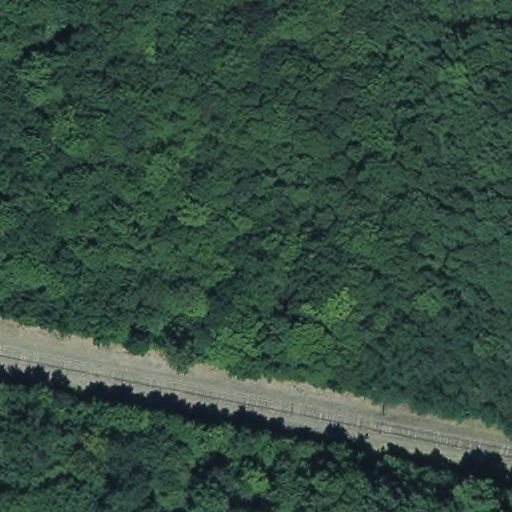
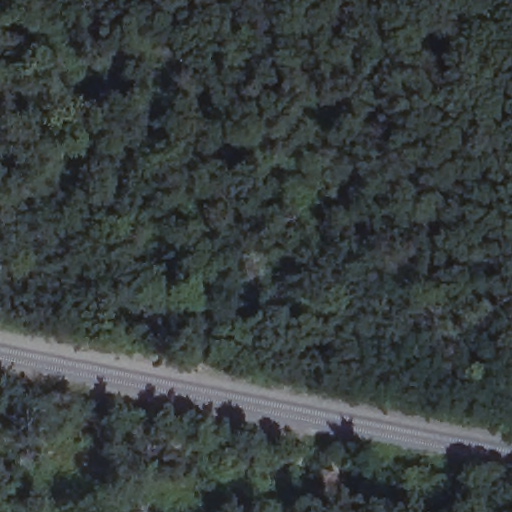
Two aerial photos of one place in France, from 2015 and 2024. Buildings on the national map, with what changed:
unchanged [(130,334),(163,339),(163,347),(161,363),(125,355),(128,340),(130,334)]

